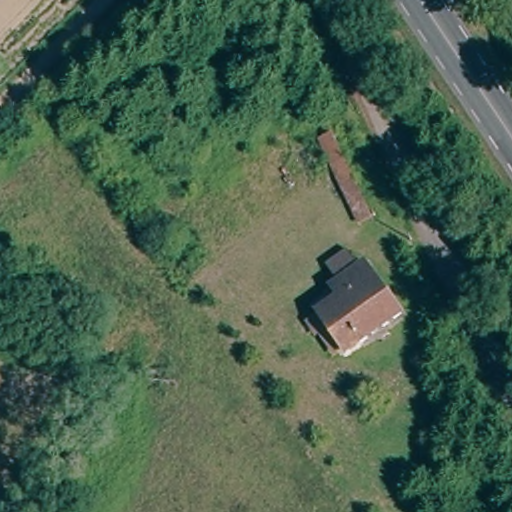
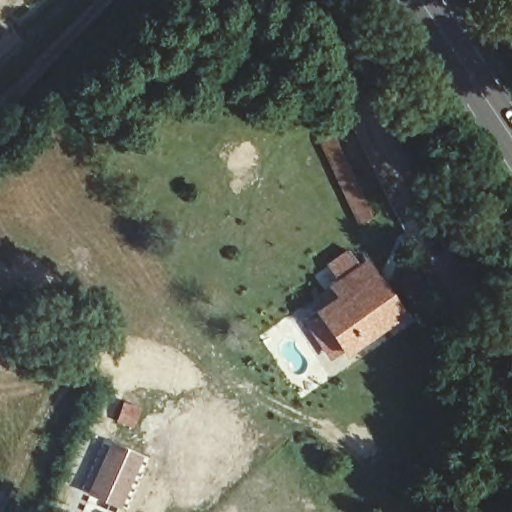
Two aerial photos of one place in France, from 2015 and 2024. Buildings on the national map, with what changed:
unchanged [(339,184),(318,138),(327,133),(349,178),(354,187),(373,177),(390,210),(361,225),(339,184)]
unchanged [(407,317),(355,359),(351,354),(339,363),(316,333),(327,324),(319,310),(339,295),(332,287),(340,281),(333,272),(355,254),(367,269),(370,267),(407,317)]
new [(118,508),(99,500),(100,496),(98,495),(96,499),(87,495),(111,441),(142,455),(118,508)]

